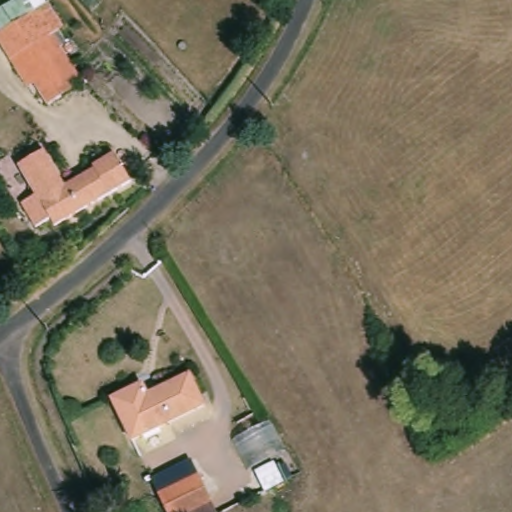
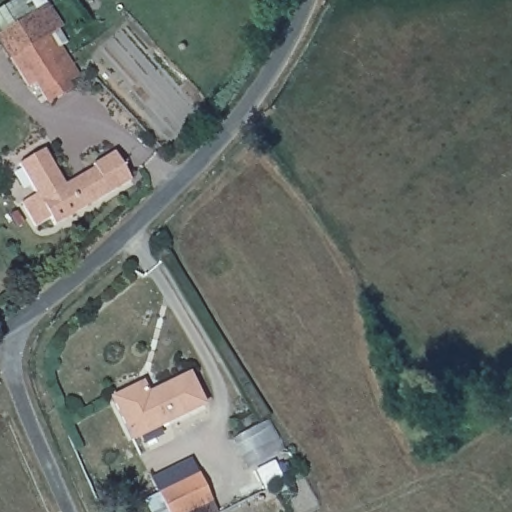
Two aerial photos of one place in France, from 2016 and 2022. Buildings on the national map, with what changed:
unchanged [(26,88),(0,46),(0,32),(0,31),(0,8),(13,0),(43,0),(63,29),(54,35),(77,77),(69,82),(73,89),(44,103),(34,84),(26,88)]
unchanged [(54,218),(39,227),(25,204),(39,194),(20,165),(45,149),(66,184),(95,166),(93,163),(114,149),(131,178),(58,225),(54,218)]
unchanged [(200,410),(128,446),(109,404),(139,390),(146,400),(188,382),(200,410)]
unchanged [(213,512),(164,512),(155,494),(194,475),(213,512)]

